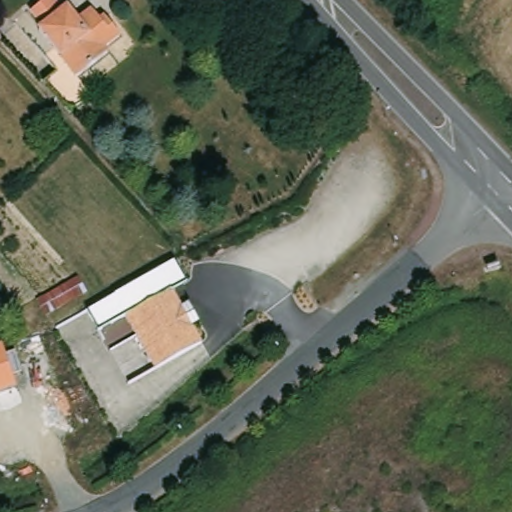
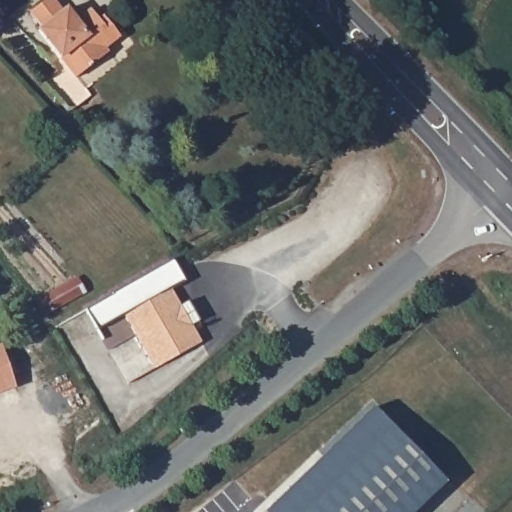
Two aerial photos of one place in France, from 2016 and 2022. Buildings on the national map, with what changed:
unchanged [(62,45),(44,24),(48,20),(35,3),(38,0),(66,0),(77,13),(91,0),(97,0),(104,7),(109,4),(125,24),(108,36),(112,41),(80,66),(72,58),(62,45)]
unchanged [(98,89),(78,106),(50,76),(64,65),(72,58),(80,66),(98,89)]
unchanged [(87,310),(174,261),(185,282),(98,329),(87,310)]
unchanged [(72,310),(61,316),(53,302),(59,299),(66,295),(97,278),(105,292),(72,310)]
unchanged [(157,373),(148,355),(128,319),(153,305),(174,293),(183,309),(192,305),(203,325),(195,330),(204,347),(157,373)]
unchanged [(2,345),(16,389),(0,394),(0,345),(2,345)]
new [(387,410),(459,486),(431,512),(281,512),(387,410)]

